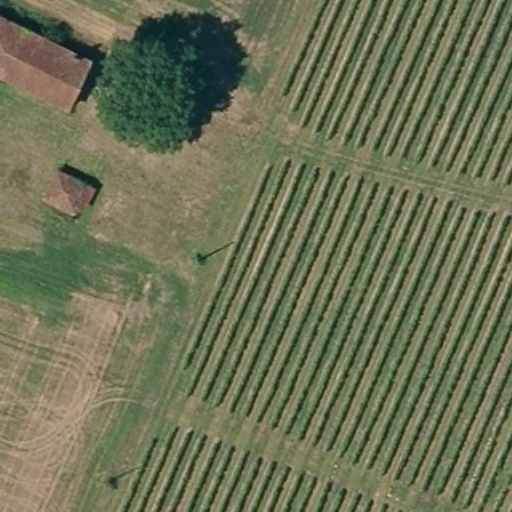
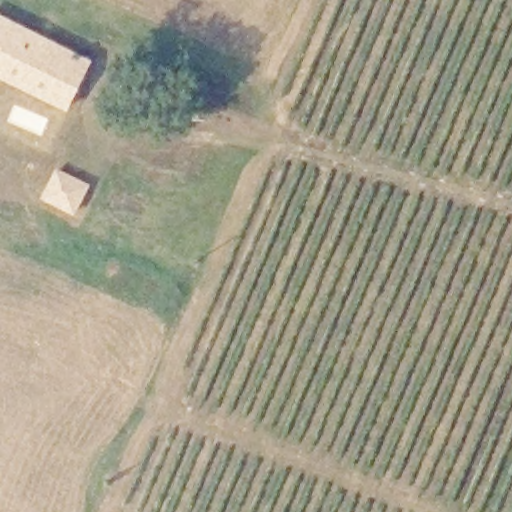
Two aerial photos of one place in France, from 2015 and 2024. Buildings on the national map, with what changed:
unchanged [(66,105),(0,74),(0,14),(90,59),(66,105)]
unchanged [(47,194),(55,170),(88,182),(79,205),(47,194)]

